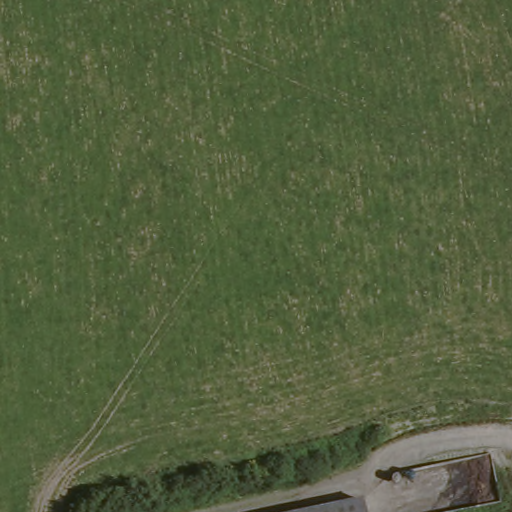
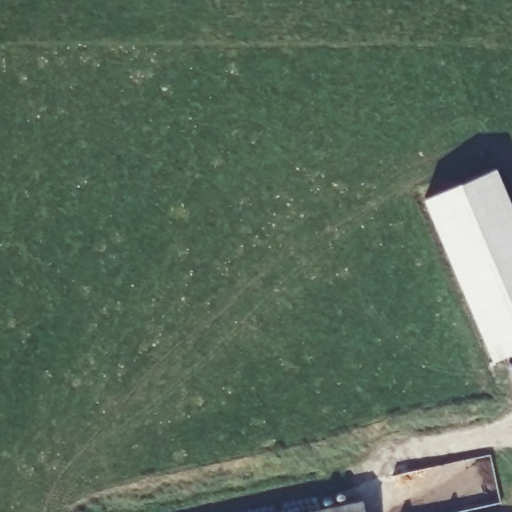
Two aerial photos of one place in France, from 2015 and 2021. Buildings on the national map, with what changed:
new [(512,207),(512,357),(496,365),(427,203),(497,172),(512,207)]
unchanged [(364,512),(331,512),(364,509),(364,512)]

